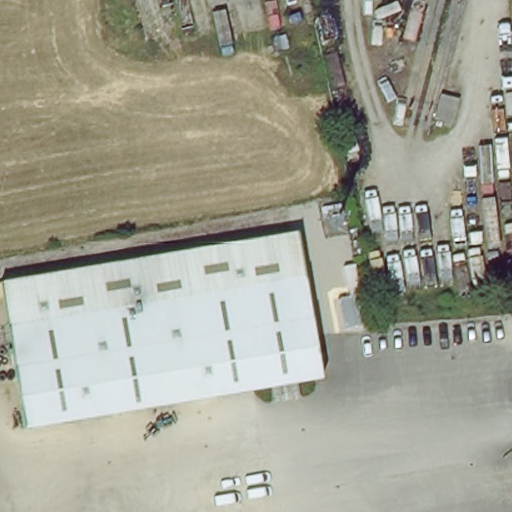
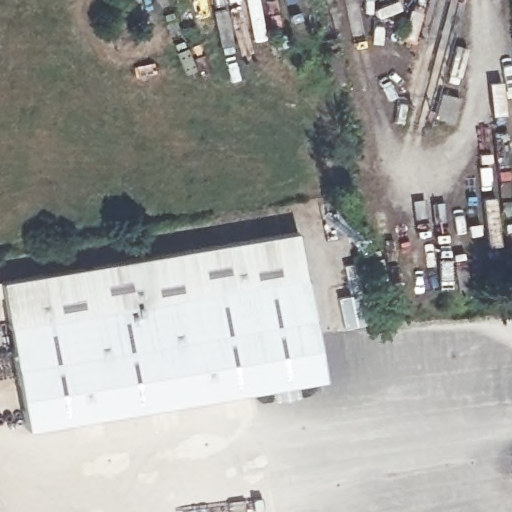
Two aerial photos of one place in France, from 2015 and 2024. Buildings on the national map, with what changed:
unchanged [(274,403),(271,387),(28,428),(11,324),(4,281),(297,229),(304,270),(325,377),(301,381),(304,398),(274,403)]

